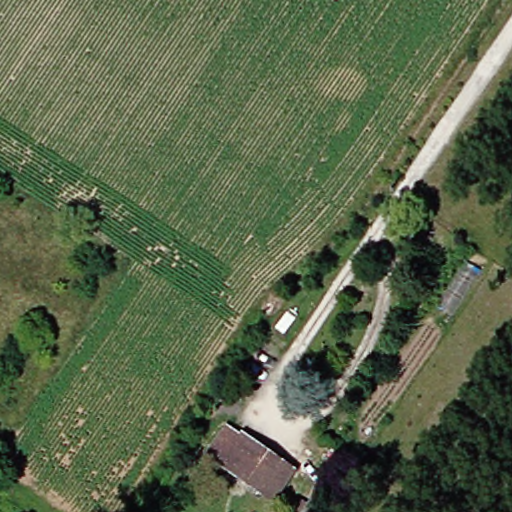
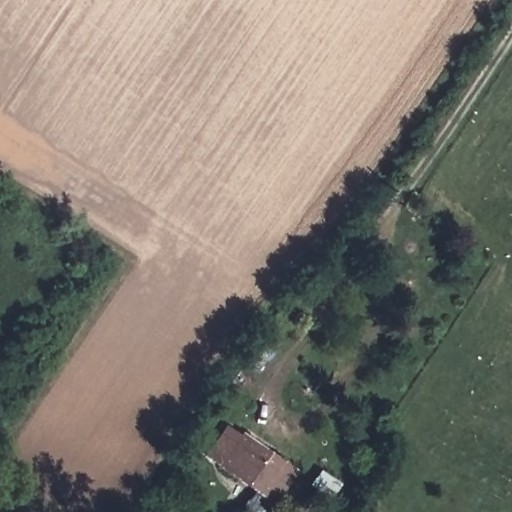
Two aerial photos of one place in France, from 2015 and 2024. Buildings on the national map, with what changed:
unchanged [(267,507),(199,457),(219,427),(234,437),(236,434),(290,472),(267,507)]

